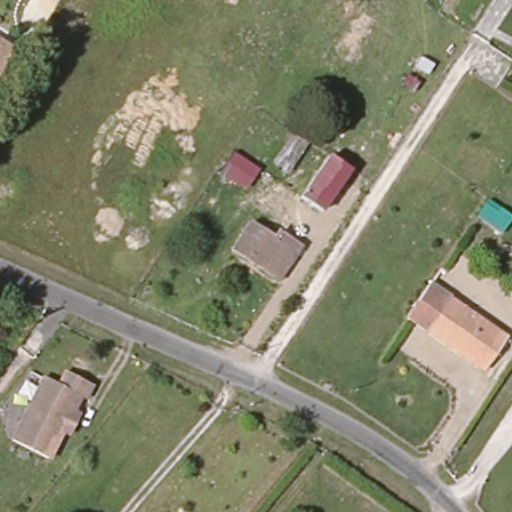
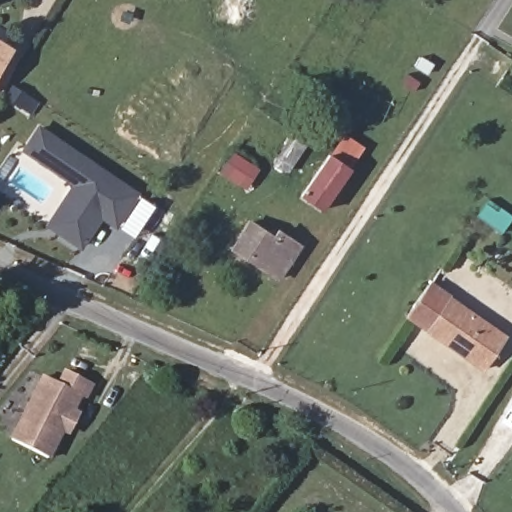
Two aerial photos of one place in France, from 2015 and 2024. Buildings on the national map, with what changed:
unchanged [(6,45),(0,55),(0,42),(6,45)]
unchanged [(310,132),(288,164),(275,155),(294,124),(310,132)]
new [(139,190),(117,226),(104,219),(84,247),(49,225),(75,185),(24,151),(40,125),(139,190)]
unchanged [(348,164),(323,200),(305,188),(330,152),(348,164)]
new [(235,153),(255,166),(242,186),(222,173),(235,153)]
unchanged [(295,245),(278,272),(233,246),(250,220),(295,245)]
unchanged [(506,335),(482,366),(405,309),(428,280),(506,335)]
unchanged [(71,434),(63,429),(46,457),(15,438),(51,376),(65,384),(72,371),(99,386),(90,403),(81,398),(74,412),(81,416),(71,434)]

